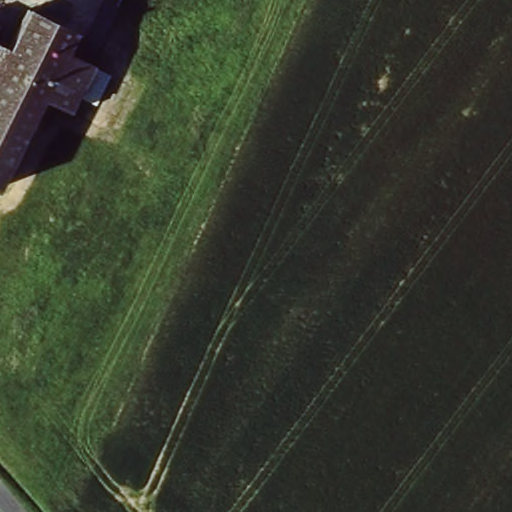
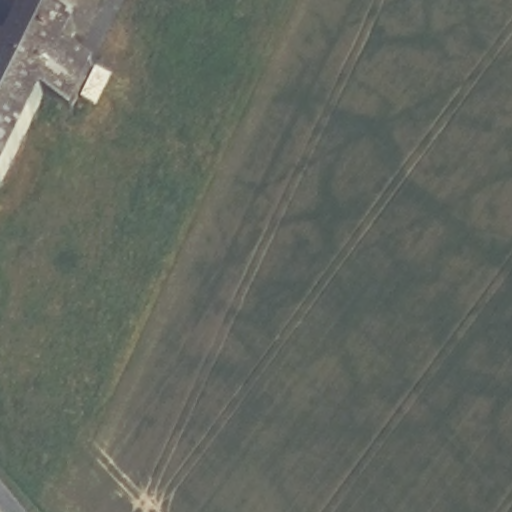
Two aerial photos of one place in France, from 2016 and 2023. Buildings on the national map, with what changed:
unchanged [(65,54),(94,65),(65,135),(29,121),(0,192),(0,49),(5,51),(22,8),(75,30),(65,54)]

